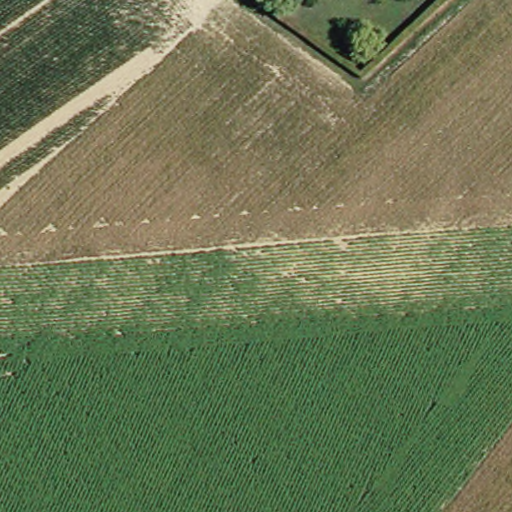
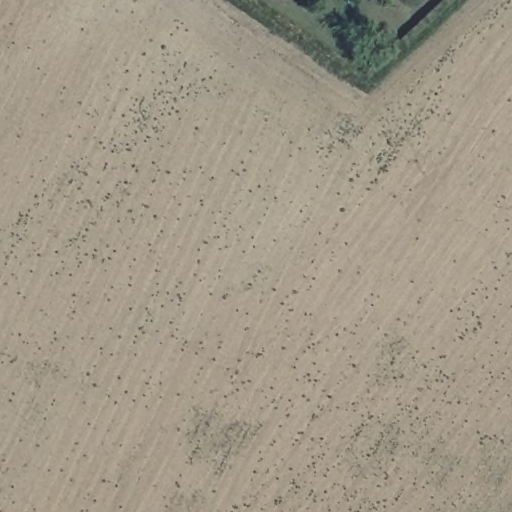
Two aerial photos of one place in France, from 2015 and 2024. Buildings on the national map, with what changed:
[]

